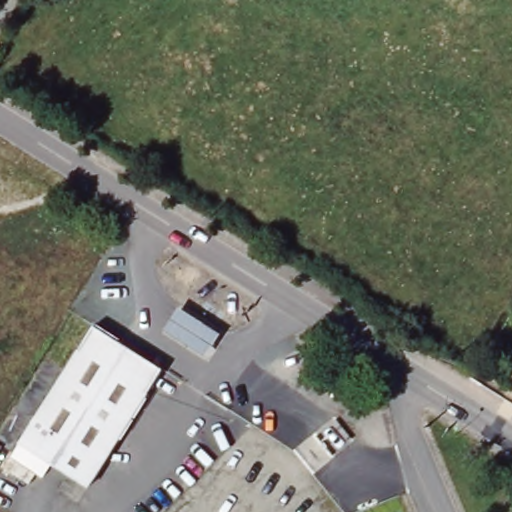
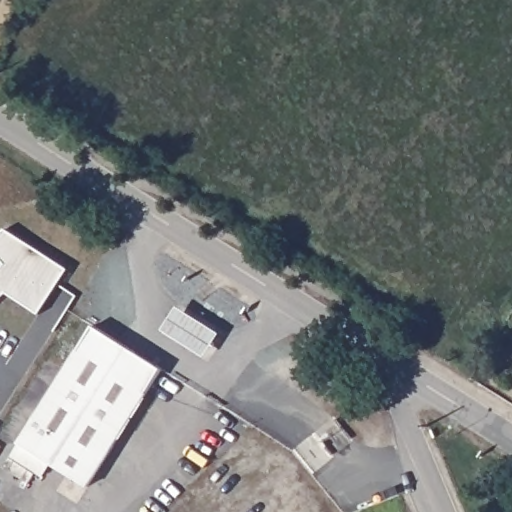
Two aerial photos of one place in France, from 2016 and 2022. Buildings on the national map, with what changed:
new [(5,263),(0,258),(0,233),(5,228),(68,268),(40,314),(7,293),(0,299),(0,268),(5,263)]
unchanged [(164,330),(179,306),(220,334),(205,356),(164,330)]
unchanged [(89,487),(20,444),(94,326),(163,369),(89,487)]
unchanged [(51,463),(42,478),(35,474),(28,484),(5,468),(12,457),(20,444),(51,463)]

